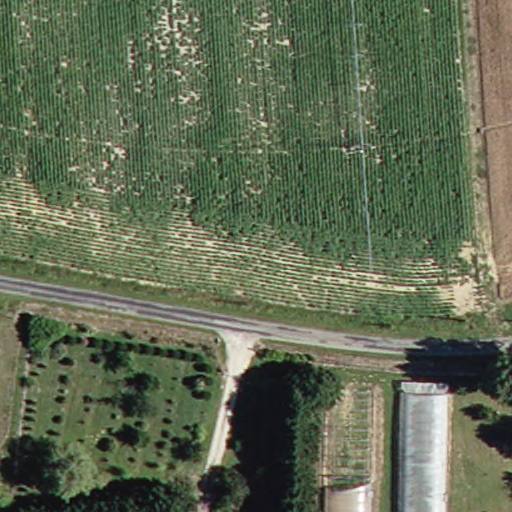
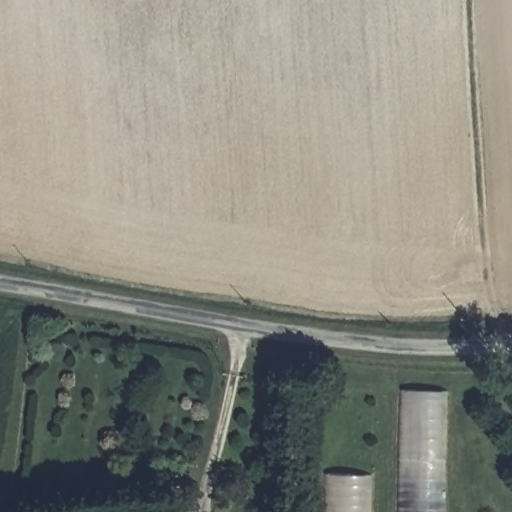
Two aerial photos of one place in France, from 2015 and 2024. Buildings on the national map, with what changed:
unchanged [(444,382),(442,512),(400,512),(405,381),(444,382)]
unchanged [(320,390),(366,392),(364,512),(320,512),(320,390)]

